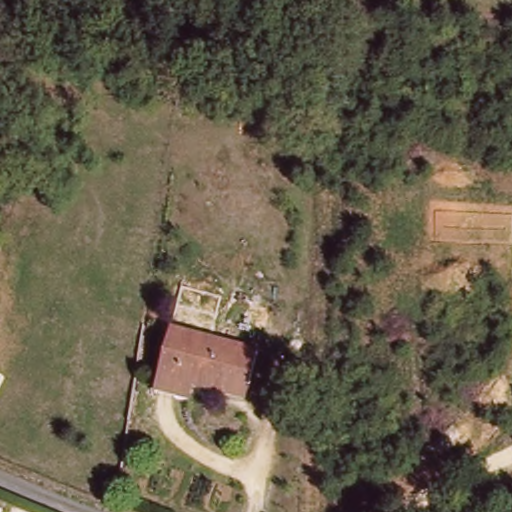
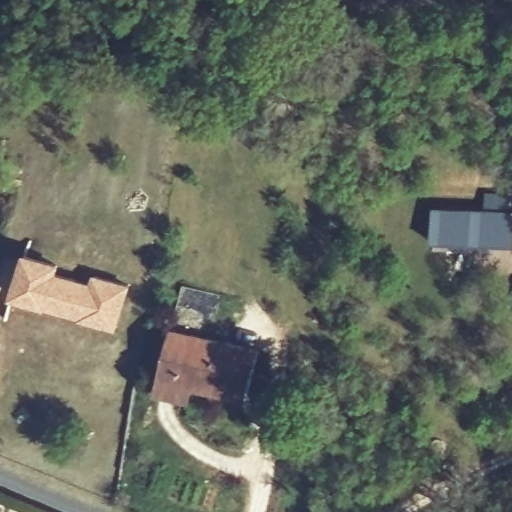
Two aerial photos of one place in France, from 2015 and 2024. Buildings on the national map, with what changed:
new [(488,207),(490,191),(512,190),(512,245),(431,240),(433,206),(488,207)]
new [(30,255),(63,265),(60,273),(97,285),(100,276),(133,286),(120,327),(87,317),(89,312),(51,300),(50,305),(18,295),(30,255)]
unchanged [(170,330),(255,345),(245,395),(195,386),(192,398),(157,392),(170,330)]

